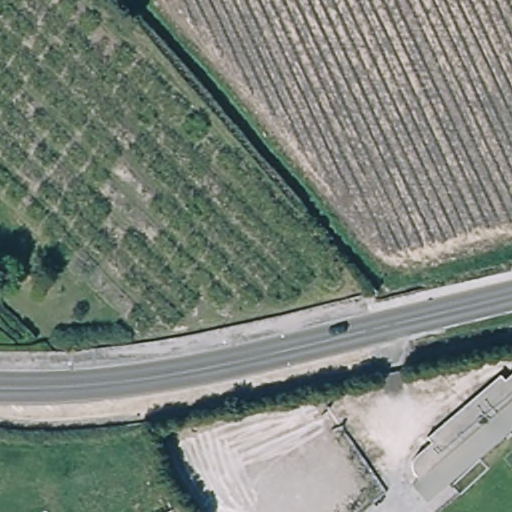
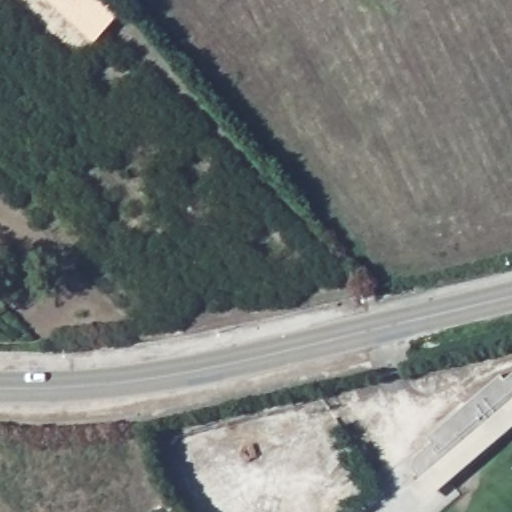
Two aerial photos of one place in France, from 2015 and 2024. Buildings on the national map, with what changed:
new [(103,0),(119,15),(96,43),(49,0),(103,0)]
unchanged [(427,492),(422,487),(420,475),(440,456),(434,450),(509,386),(512,389),(512,433),(450,485),(444,479),(427,492)]

